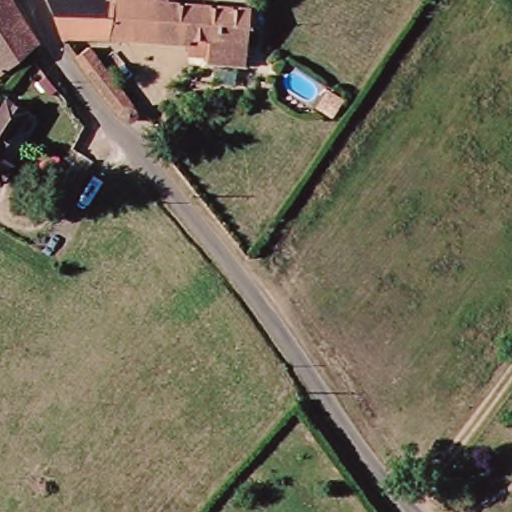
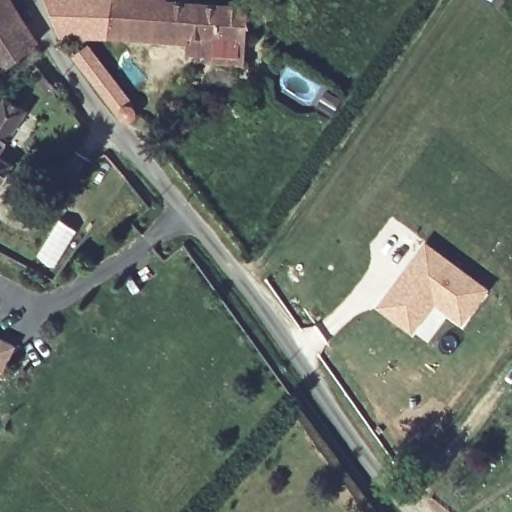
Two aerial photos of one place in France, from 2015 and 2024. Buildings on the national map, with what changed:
unchanged [(33,42),(0,67),(0,0),(7,0),(33,42)]
unchanged [(244,6),(236,67),(201,60),(205,37),(54,37),(37,0),(165,0),(244,6)]
unchanged [(119,116),(71,56),(87,44),(132,104),(119,116)]
unchanged [(0,95),(20,107),(0,141),(0,95)]
unchanged [(0,170),(0,155),(7,159),(0,170)]
new [(462,325),(434,304),(410,334),(374,307),(425,240),(489,288),(462,325)]
new [(1,375),(0,374),(0,338),(15,346),(1,375)]

